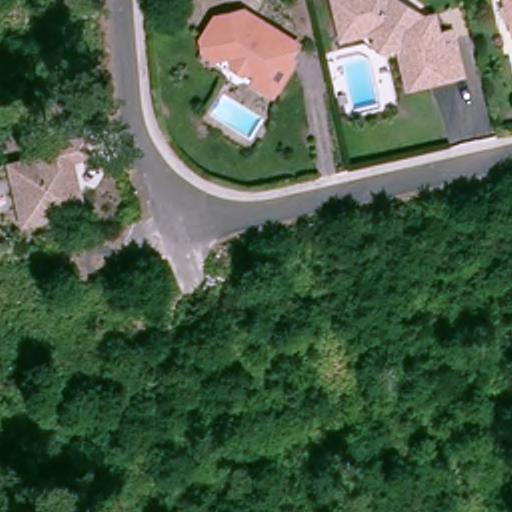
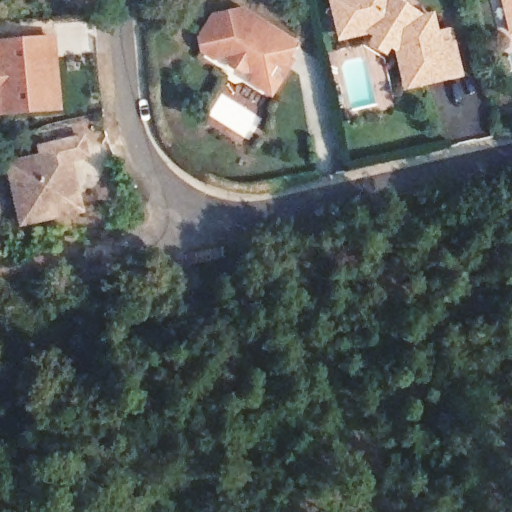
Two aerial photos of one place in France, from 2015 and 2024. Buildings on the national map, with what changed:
unchanged [(381,27),(375,24),(358,27),(341,32),(339,22),(334,0),(396,0),(420,15),(433,12),(437,30),(451,27),(461,69),(410,81),(400,37),(394,34),(387,47),(374,41),(381,27)]
unchanged [(499,0),(512,0),(512,32),(507,34),(499,0)]
unchanged [(248,76),(253,68),(248,65),(239,67),(234,64),(228,60),(226,51),(224,49),(211,53),(201,47),(198,34),(211,12),(241,6),(267,22),(294,40),(282,59),(286,62),(273,82),(269,89),(248,76)]
new [(54,40),(60,109),(12,113),(6,44),(54,40)]
new [(6,44),(12,113),(0,114),(0,45),(6,44)]
unchanged [(10,187),(5,166),(40,158),(38,149),(79,139),(84,157),(67,161),(78,211),(31,222),(19,225),(10,187)]

